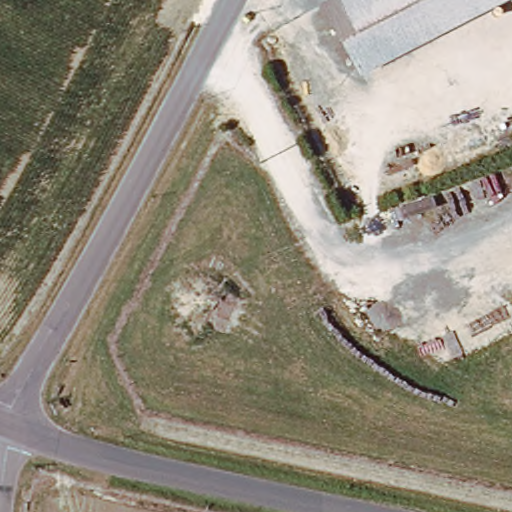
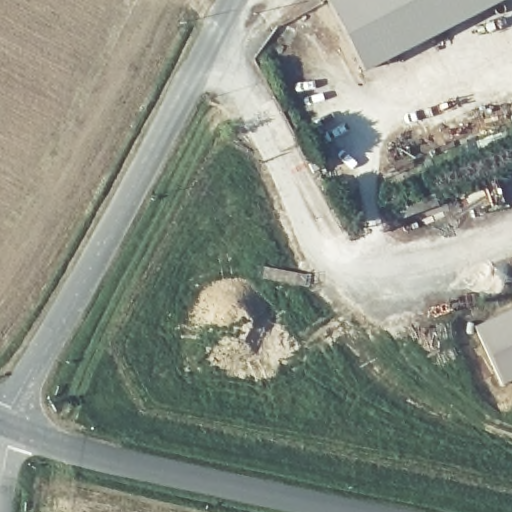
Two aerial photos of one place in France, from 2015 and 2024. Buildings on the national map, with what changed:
unchanged [(331,0),(496,0),(365,68),(331,0)]
new [(512,381),(496,389),(469,333),(512,312),(512,381)]

